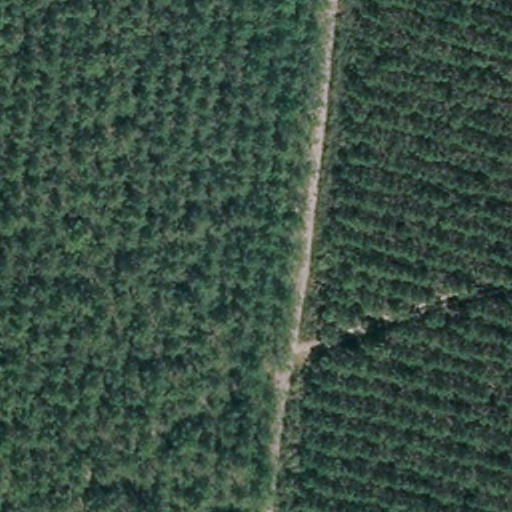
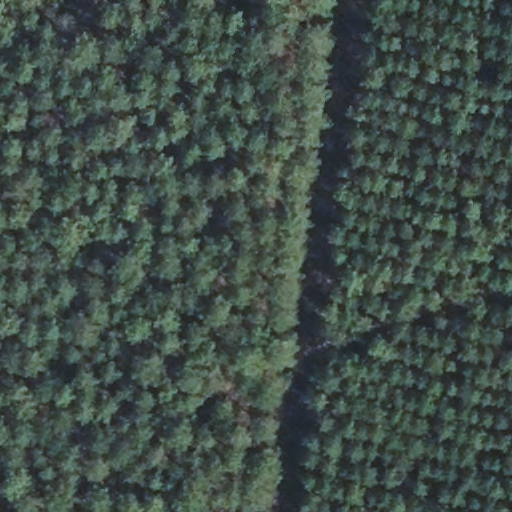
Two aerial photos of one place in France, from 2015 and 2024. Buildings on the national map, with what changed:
[]

